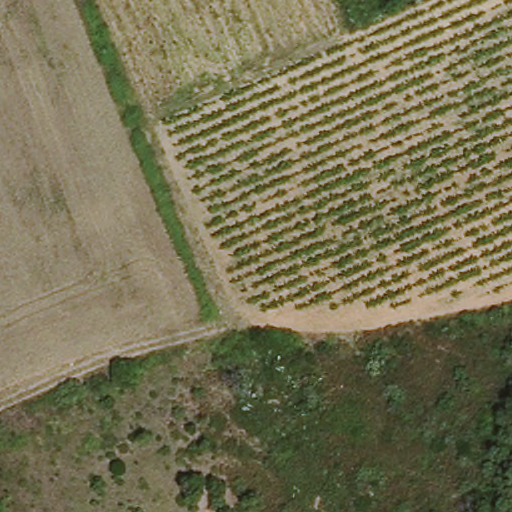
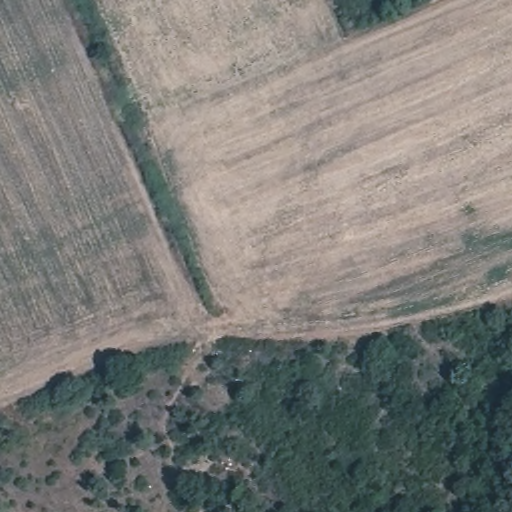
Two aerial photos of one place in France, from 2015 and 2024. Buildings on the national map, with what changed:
[]

